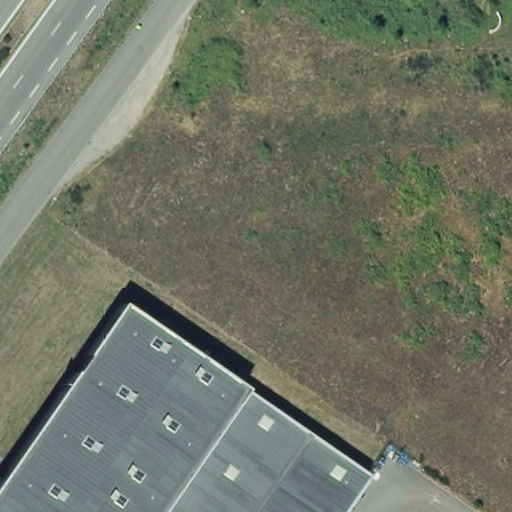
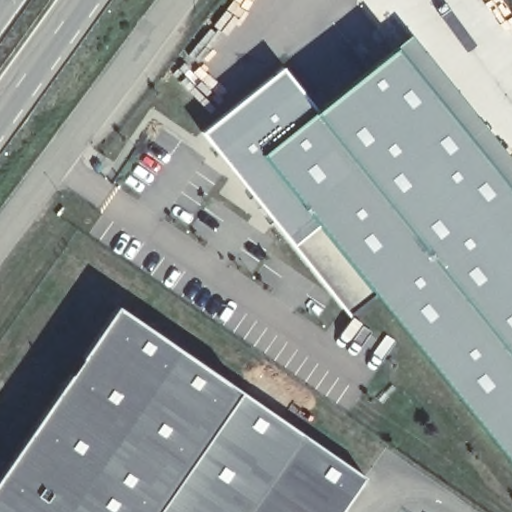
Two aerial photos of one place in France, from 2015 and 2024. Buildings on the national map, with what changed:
new [(350,317),(293,246),(203,132),(284,69),(315,111),(396,47),(411,35),(512,159),(512,464),(377,297),(350,317)]
unchanged [(117,310),(365,482),(344,512),(0,512),(0,478),(117,310)]

